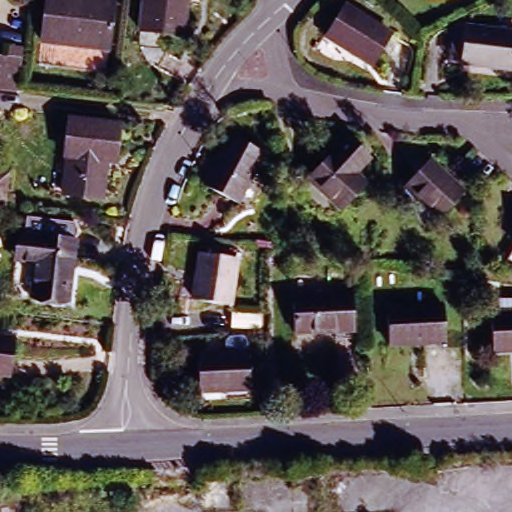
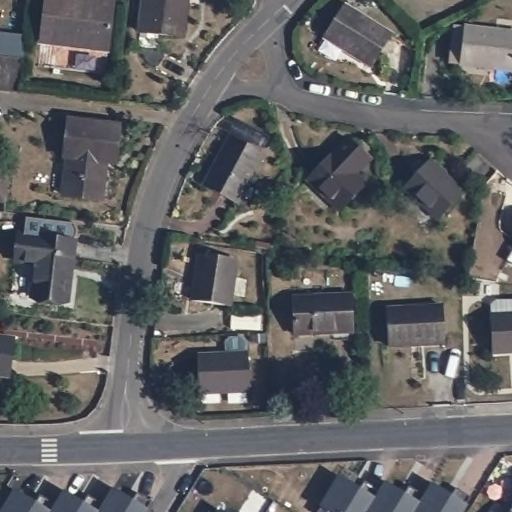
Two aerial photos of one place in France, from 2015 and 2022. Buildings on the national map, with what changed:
unchanged [(41,45),(47,0),(80,0),(112,4),(107,54),(41,45)]
unchanged [(141,0),(187,0),(182,39),(160,36),(137,34),(141,0)]
unchanged [(372,72),(325,43),(344,13),(390,43),(372,72)]
new [(0,32),(25,35),(19,63),(0,60),(0,32)]
unchanged [(160,36),(157,55),(159,60),(165,63),(160,84),(152,83),(146,79),(142,74),(139,70),(136,63),(135,55),(137,34),(160,36)]
unchanged [(457,34),(468,34),(512,34),(512,66),(468,66),(456,66),(457,34)]
unchanged [(14,97),(0,95),(0,60),(19,63),(14,97)]
unchanged [(112,165),(103,164),(97,202),(60,198),(66,159),(60,159),(65,123),(117,130),(112,165)]
unchanged [(240,202),(207,187),(231,139),(262,154),(240,202)]
unchanged [(344,219),(300,195),(327,145),(349,158),(355,161),(347,178),(361,184),(344,219)]
unchanged [(444,220),(400,198),(416,165),(460,188),(444,220)]
unchanged [(0,174),(9,175),(5,206),(0,205),(0,174)]
unchanged [(68,303),(32,298),(40,239),(76,243),(68,303)]
unchanged [(231,305),(193,299),(202,252),(240,259),(231,305)]
unchanged [(511,254),(512,252),(512,254),(511,254)]
unchanged [(357,339),(296,339),(296,299),(357,299),(357,339)]
unchanged [(260,312),(261,326),(232,328),(231,313),(260,312)]
unchanged [(446,350),(386,351),(385,314),(446,313),(446,350)]
unchanged [(490,366),(488,329),(487,319),(494,314),(512,315),(512,364),(490,366)]
unchanged [(0,378),(0,340),(12,342),(7,379),(0,378)]
unchanged [(199,394),(200,358),(229,359),(230,347),(234,343),(245,344),(249,348),(249,359),(247,396),(199,394)]
new [(319,506),(339,474),(374,497),(375,498),(385,481),(420,502),(432,483),(470,507),(466,512),(367,512),(329,512),(319,506)]
new [(114,487),(149,511),(147,512),(99,512),(114,487)]
new [(17,491),(51,512),(65,491),(99,512),(2,512),(17,491)]
new [(221,509),(225,512),(219,512),(221,509)]
new [(512,510),(512,512),(511,512),(512,510)]

